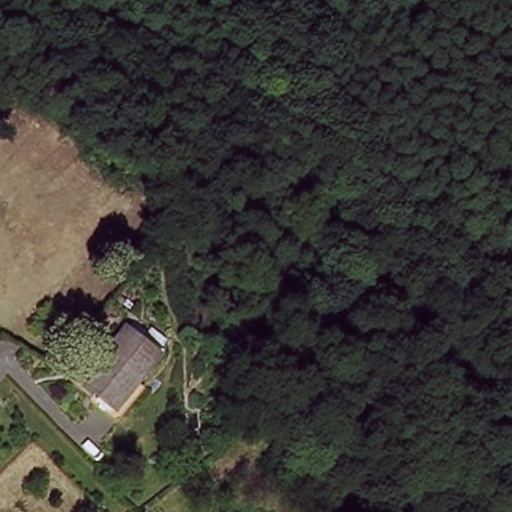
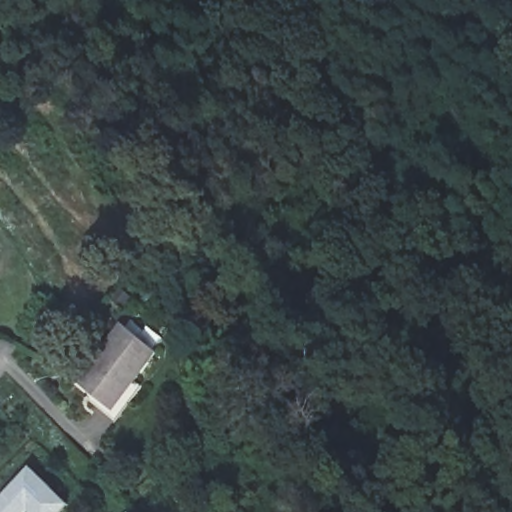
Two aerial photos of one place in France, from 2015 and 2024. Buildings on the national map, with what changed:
unchanged [(160,362),(112,413),(80,385),(127,331),(160,362)]
new [(31,465),(71,505),(64,512),(0,512),(0,497),(31,465)]

